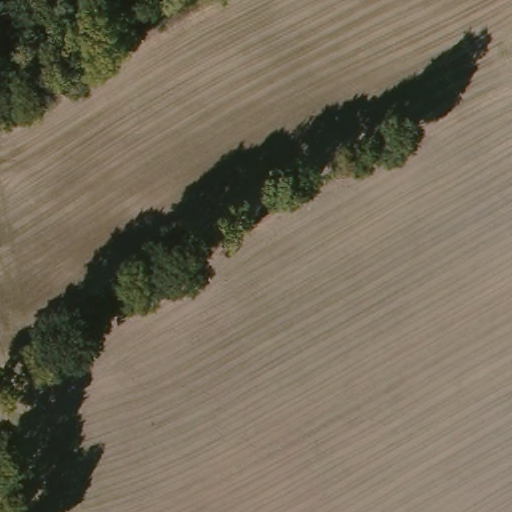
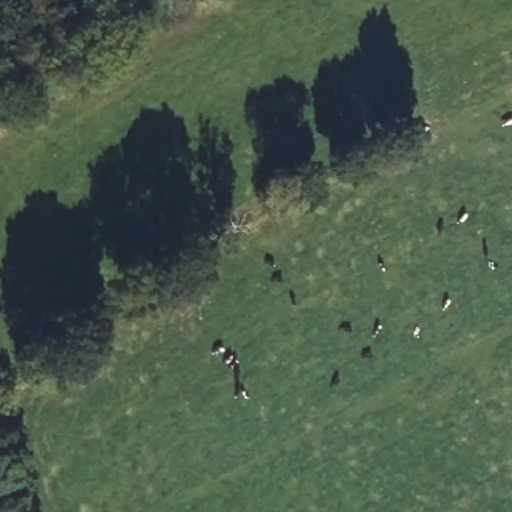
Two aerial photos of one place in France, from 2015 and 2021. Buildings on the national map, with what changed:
[]

